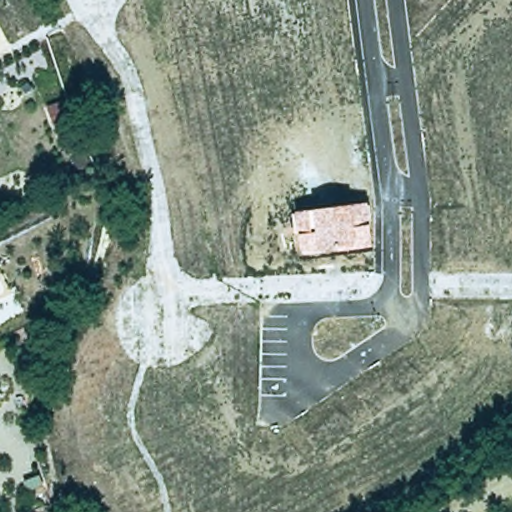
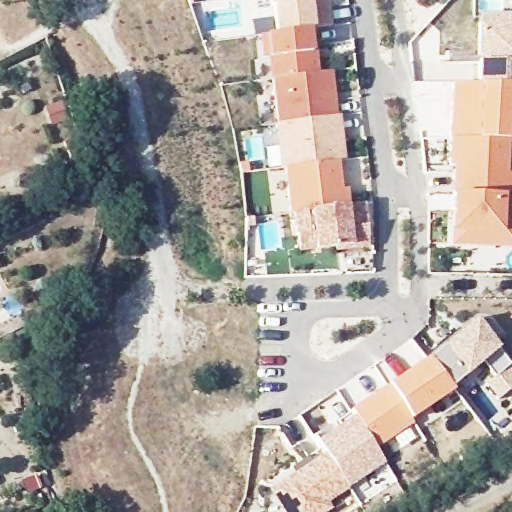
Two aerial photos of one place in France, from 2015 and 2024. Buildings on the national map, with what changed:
new [(215,0),(192,4),(189,4),(188,0),(214,0),(215,0)]
new [(275,34),(272,6),(271,0),(328,0),(331,25),(313,29),(275,34)]
new [(478,85),(478,62),(477,24),(479,24),(478,15),(508,14),(507,23),(512,23),(512,85),(478,85)]
new [(272,80),(269,58),(262,59),(259,36),(266,35),(275,34),(310,30),(313,50),(317,50),(318,74),(272,80)]
new [(276,124),(272,80),(318,74),(332,72),(337,116),(276,124)]
new [(285,168),(280,169),(274,124),(276,124),(337,116),(340,116),(345,160),(338,162),(285,168)]
new [(508,173),(512,173),(512,194),(453,194),(452,166),(448,165),(448,139),(508,139),(508,173)]
new [(338,162),(343,190),(348,189),(350,206),(292,212),(290,213),(285,168),(338,162)]
new [(453,194),(512,194),(512,230),(500,230),(500,244),(453,243),(453,227),(453,213),(453,194)]
unchanged [(350,206),(367,204),(372,247),(298,257),(292,212),(350,206)]
new [(509,366),(512,369),(512,387),(499,399),(486,383),(495,376),(483,361),(452,387),(429,361),(475,319),(490,320),(500,332),(493,339),(498,347),(511,364),(509,366)]
new [(377,444),(337,469),(325,453),(320,447),(312,434),(352,408),(377,444)]
new [(350,488),(330,504),(333,509),(328,512),(282,512),(267,492),(293,474),(290,469),(307,457),(320,447),(325,453),(337,469),(350,488)]

